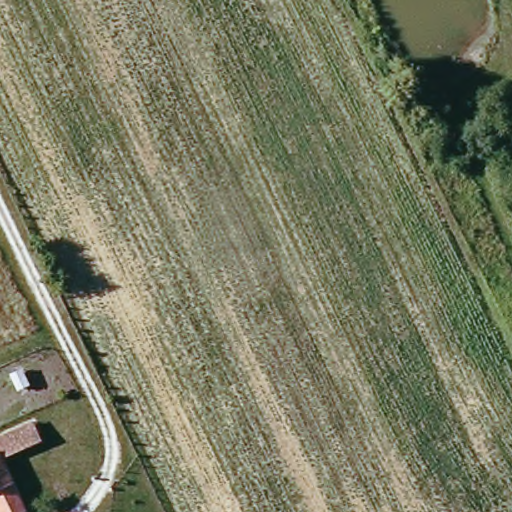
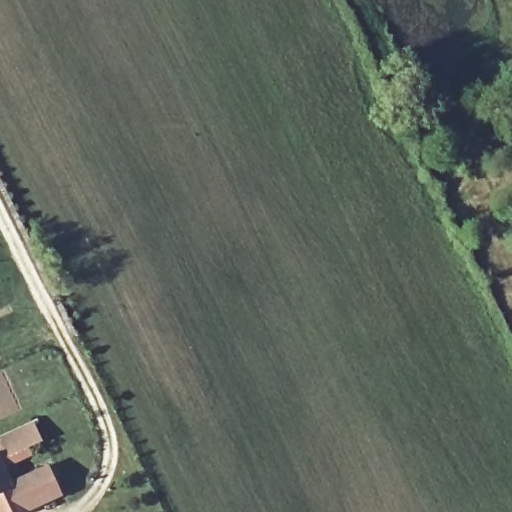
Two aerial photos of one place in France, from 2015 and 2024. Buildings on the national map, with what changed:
unchanged [(0,456),(0,433),(31,419),(39,437),(0,456)]
unchanged [(16,512),(0,512),(0,457),(23,508),(16,512)]
new [(10,479),(48,462),(61,493),(23,508),(10,479)]

